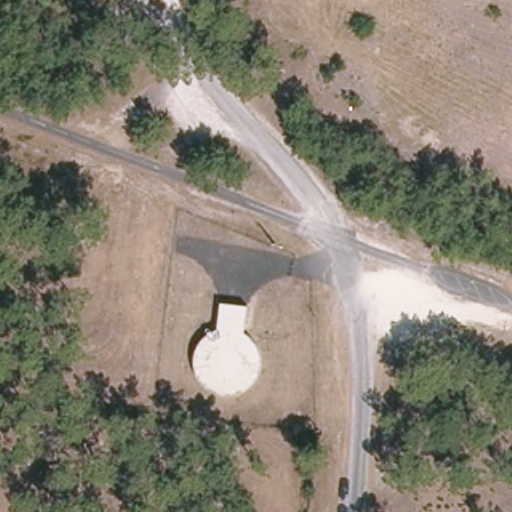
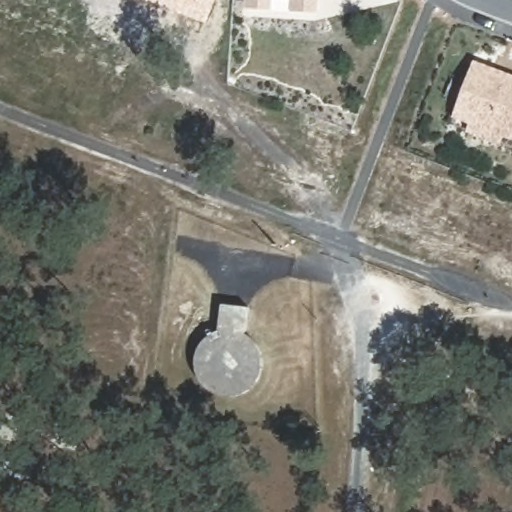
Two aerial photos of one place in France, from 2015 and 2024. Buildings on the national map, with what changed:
new [(207,23),(169,8),(148,0),(216,0),(207,23)]
new [(251,0),(272,0),(272,4),(251,3),(251,0)]
new [(318,8),(297,6),(297,0),(318,0),(318,8)]
new [(476,63),(494,71),(512,78),(512,139),(503,135),(500,144),(469,131),(472,123),(456,117),(458,111),(476,63)]
unchanged [(46,489),(46,468),(79,464),(81,486),(46,489)]

